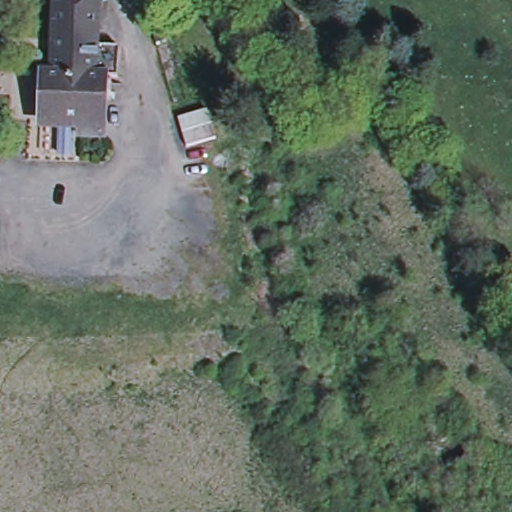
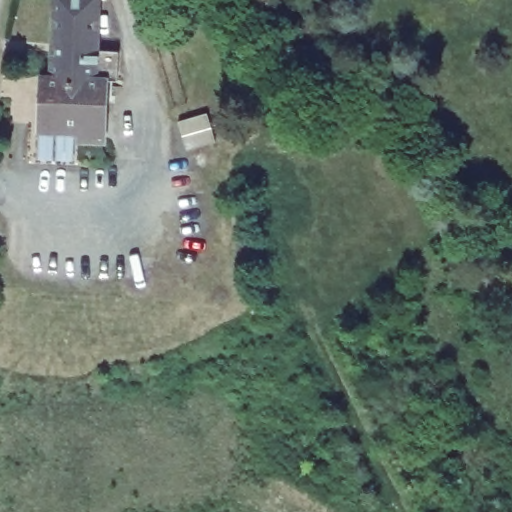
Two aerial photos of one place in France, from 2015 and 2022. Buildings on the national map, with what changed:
unchanged [(79,129),(40,127),(41,81),(51,81),(55,0),(96,0),(95,55),(118,55),(118,85),(105,85),(103,146),(78,145),(79,129)]
unchanged [(472,452),(443,467),(430,442),(458,428),(472,452)]

